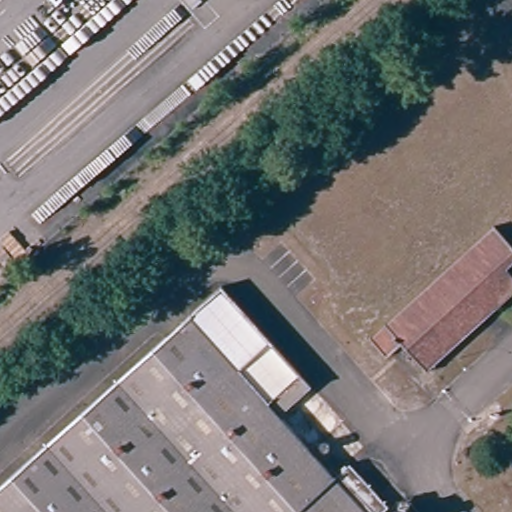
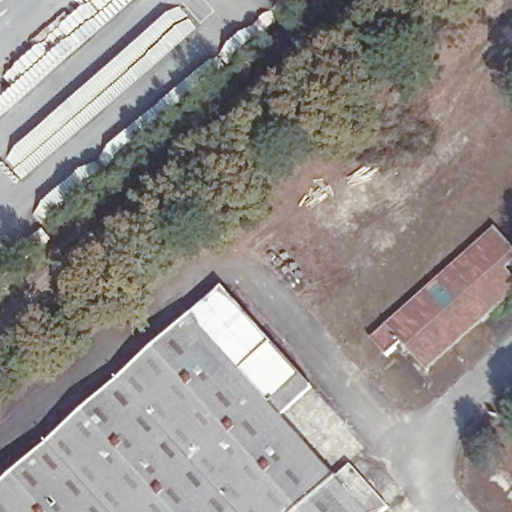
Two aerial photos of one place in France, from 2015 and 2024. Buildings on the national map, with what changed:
unchanged [(502,225),(512,235),(512,297),(433,368),(429,364),(411,345),(395,358),(378,337),(374,333),(498,221),(502,225)]
unchanged [(310,391),(280,417),(325,467),(335,479),(352,464),(390,509),(386,512),(0,512),(0,489),(221,291),(310,391)]

